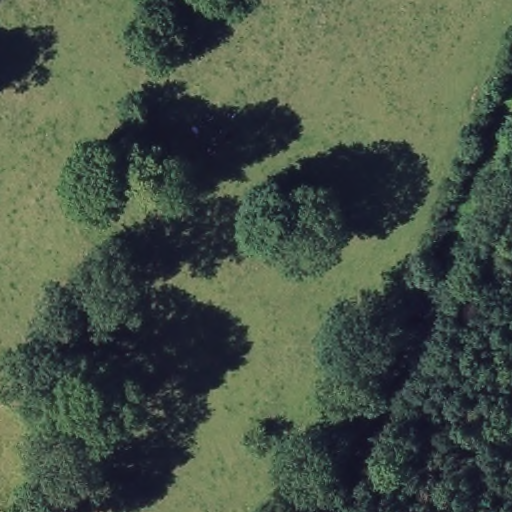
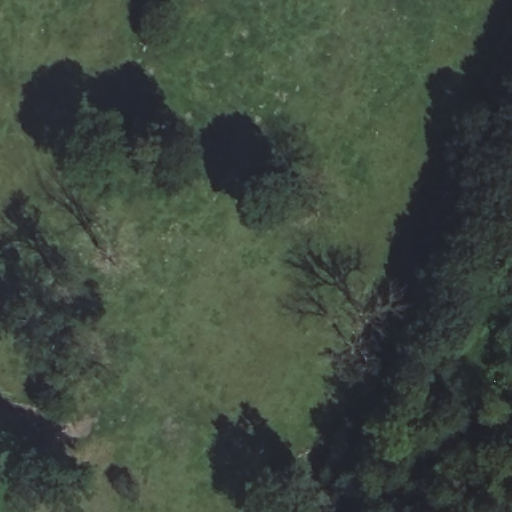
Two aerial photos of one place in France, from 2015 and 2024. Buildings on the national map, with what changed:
[]

